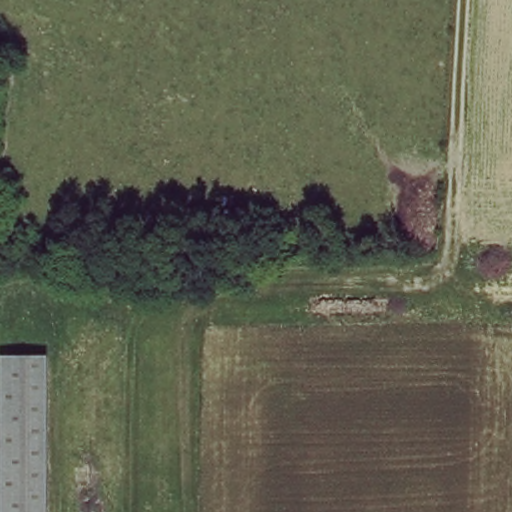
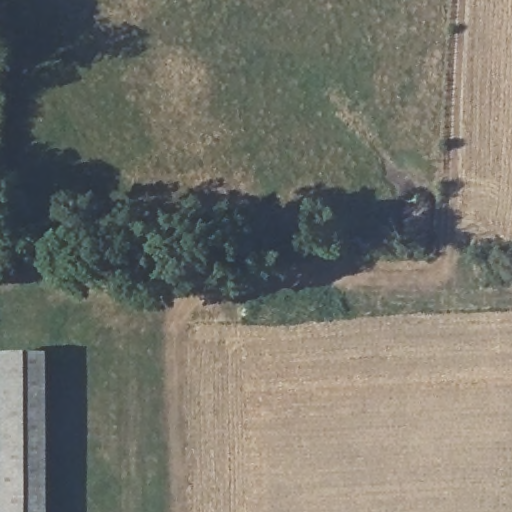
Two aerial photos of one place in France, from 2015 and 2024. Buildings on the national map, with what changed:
unchanged [(5,440),(5,379),(4,355),(48,355),(49,406),(49,473),(49,512),(5,512),(5,500),(5,440)]

